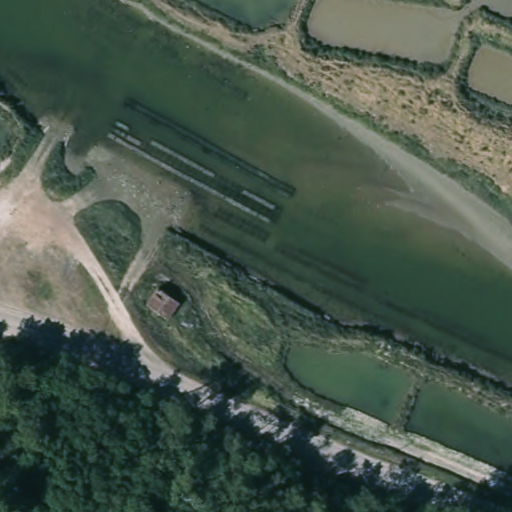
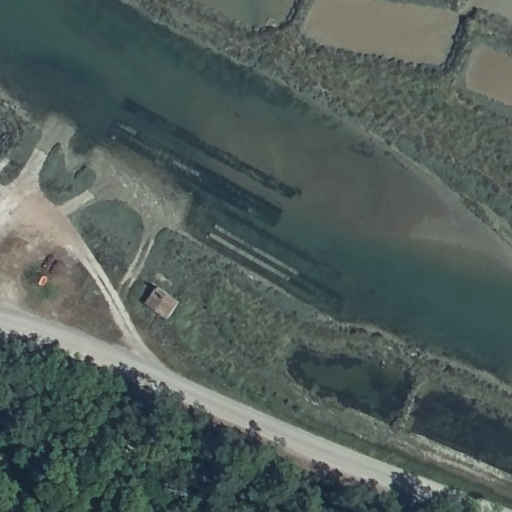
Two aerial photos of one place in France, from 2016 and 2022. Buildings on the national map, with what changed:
unchanged [(182,299),(170,318),(149,305),(161,286),(182,299)]

